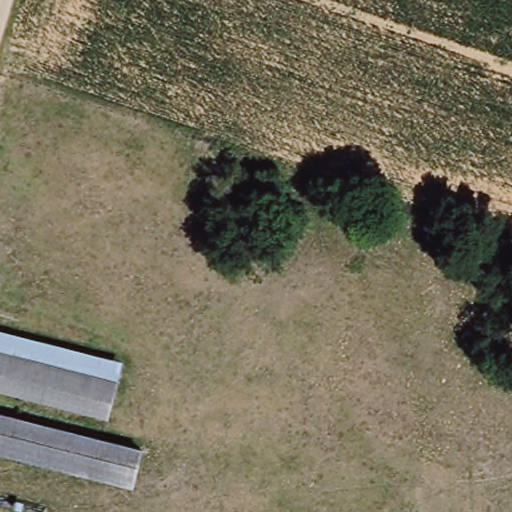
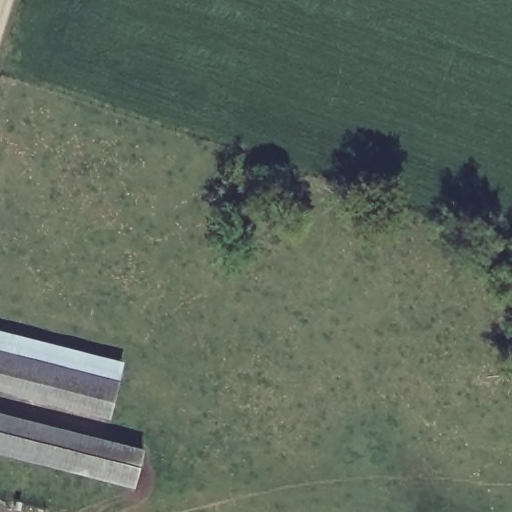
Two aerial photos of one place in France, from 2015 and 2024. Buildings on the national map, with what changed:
unchanged [(0,353),(0,334),(127,368),(121,385),(0,353)]
unchanged [(0,392),(0,353),(121,385),(111,421),(0,392)]
unchanged [(0,417),(139,452),(130,487),(0,453),(0,417)]

